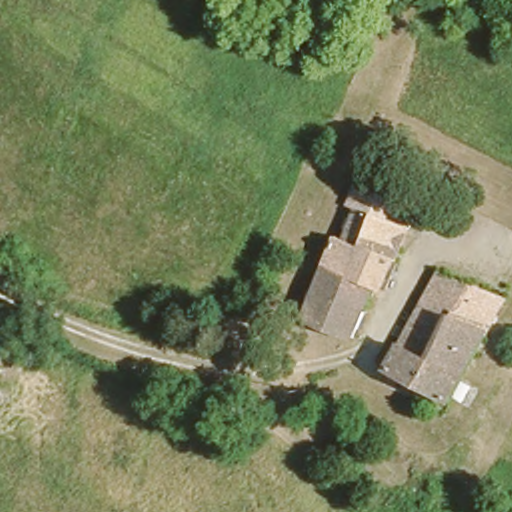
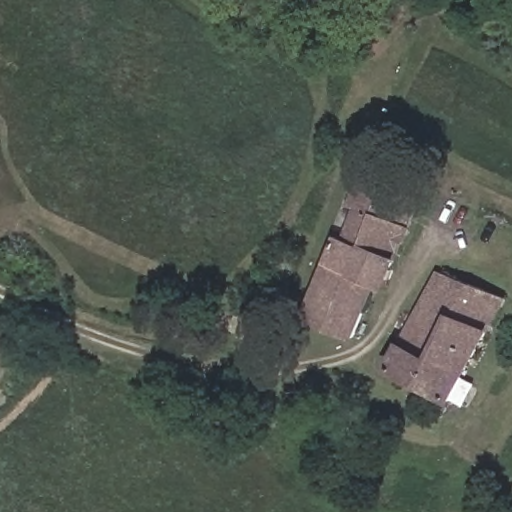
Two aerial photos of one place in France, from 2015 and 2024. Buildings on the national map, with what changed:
unchanged [(417,191),(382,279),(372,275),(352,328),(302,307),(333,227),(342,230),(356,194),(347,192),(357,168),(417,191)]
unchanged [(454,392),(389,359),(438,259),(503,292),(454,392)]

